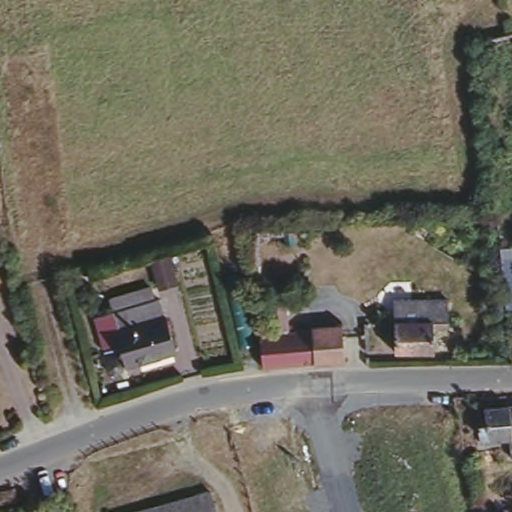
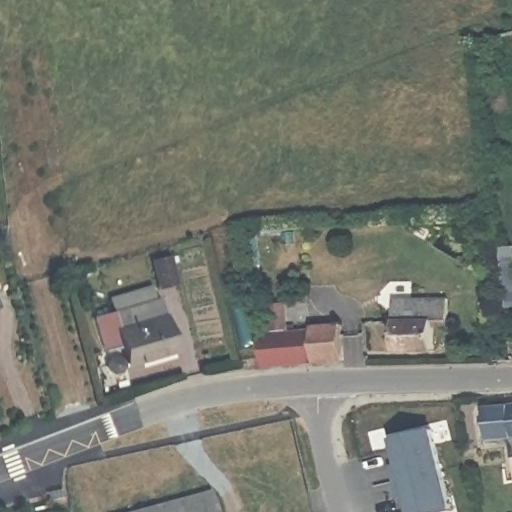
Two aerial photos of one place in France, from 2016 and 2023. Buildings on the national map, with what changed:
unchanged [(172,350),(122,365),(117,347),(97,353),(91,319),(81,294),(102,289),(108,310),(159,296),(172,350)]
unchanged [(422,301),(451,298),(452,327),(432,327),(433,352),(397,353),(395,323),(395,291),(421,289),(422,301)]
unchanged [(512,327),(505,327),(504,299),(503,293),(512,292),(512,327)]
unchanged [(272,324),(318,322),(318,319),(341,318),(345,360),(322,360),(293,361),(280,364),(268,367),(261,325),(272,324)]
unchanged [(488,433),(485,401),(512,399),(512,435),(507,436),(488,433)]
new [(406,498),(398,500),(390,467),(397,465),(391,438),(435,427),(455,509),(444,512),(410,512),(406,498)]
unchanged [(212,491),(217,512),(119,512),(212,491)]

